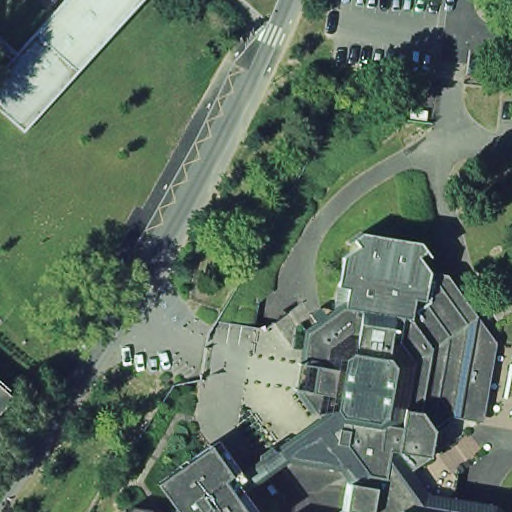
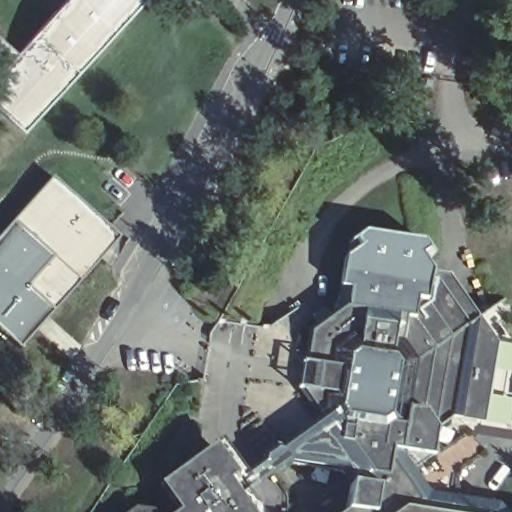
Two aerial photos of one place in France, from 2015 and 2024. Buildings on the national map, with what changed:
unchanged [(0,36),(18,53),(65,0),(144,0),(134,11),(24,133),(0,110),(0,72),(11,60),(0,50),(0,36)]
unchanged [(428,110),(426,118),(412,117),(414,108),(428,110)]
new [(23,347),(0,327),(0,236),(54,177),(118,237),(23,347)]
unchanged [(331,417),(331,413),(321,413),(306,389),(316,331),(345,309),(354,257),(369,247),(363,239),(372,232),(431,241),(437,250),(429,257),(478,325),(462,417),(444,431),(440,458),(421,471),(439,495),(414,512),(418,512),(352,512),(354,511),(359,483),(349,470),(298,461),(248,499),(236,484),(331,417)]
demolished [(28,340),(10,361),(0,352),(0,324),(4,319),(28,340)]
demolished [(0,417),(0,383),(17,398),(0,417)]
unchanged [(186,511),(168,483),(199,461),(201,464),(223,447),(243,476),(234,482),(236,484),(248,499),(257,512),(185,512),(186,511)]
unchanged [(143,507),(163,509),(164,512),(136,512),(143,507)]

